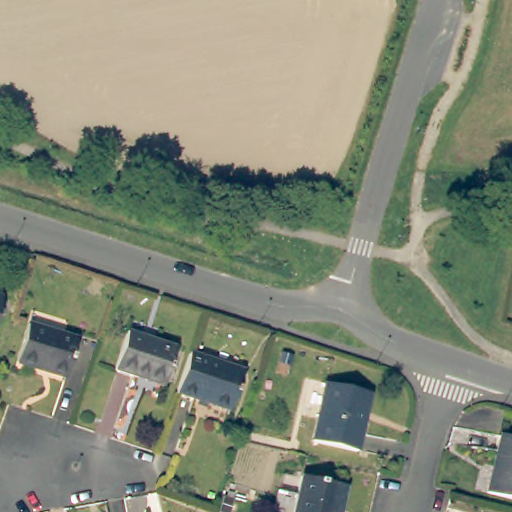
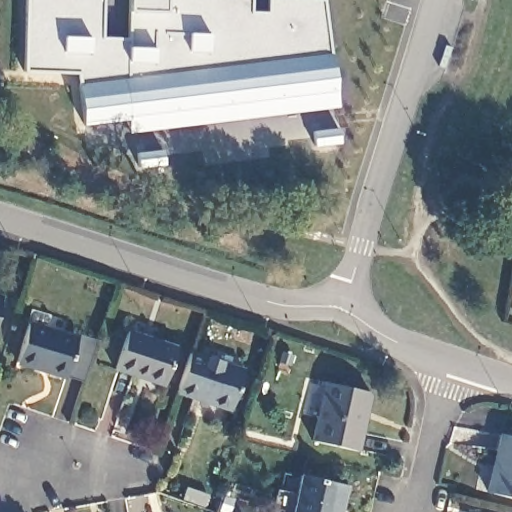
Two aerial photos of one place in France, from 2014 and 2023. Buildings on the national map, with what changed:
new [(30,0),(102,0),(102,37),(130,38),(133,0),(251,0),(251,13),(270,14),(270,0),(281,0),(324,2),(336,91),(85,121),(81,70),(27,68),(30,0)]
new [(336,91),(338,108),(131,134),(128,117),(336,91)]
unchanged [(75,336),(64,375),(15,360),(27,322),(75,336)]
unchanged [(175,346),(162,384),(114,367),(125,330),(175,346)]
unchanged [(243,369),(229,408),(175,392),(188,350),(243,369)]
unchanged [(367,391),(355,449),(312,439),(323,381),(367,391)]
unchanged [(512,436),(512,497),(486,491),(499,433),(512,436)]
unchanged [(346,484),(340,512),(292,512),(300,475),(338,483),(346,484)]

